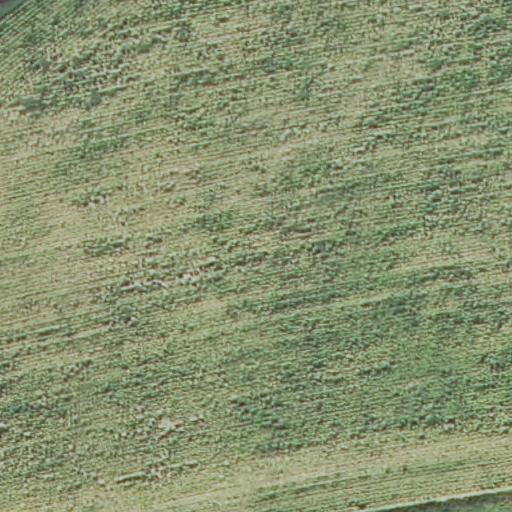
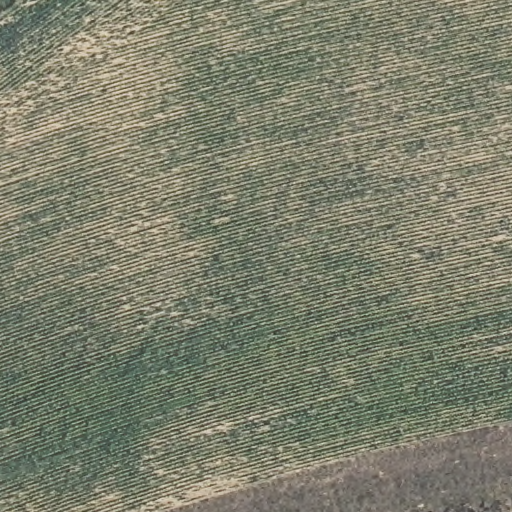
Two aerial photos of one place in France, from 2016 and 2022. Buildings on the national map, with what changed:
[]

